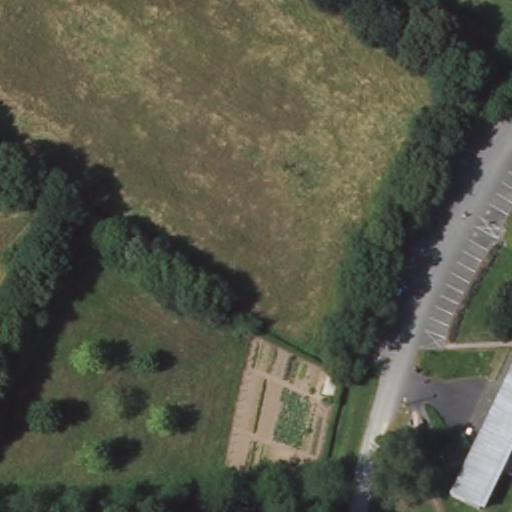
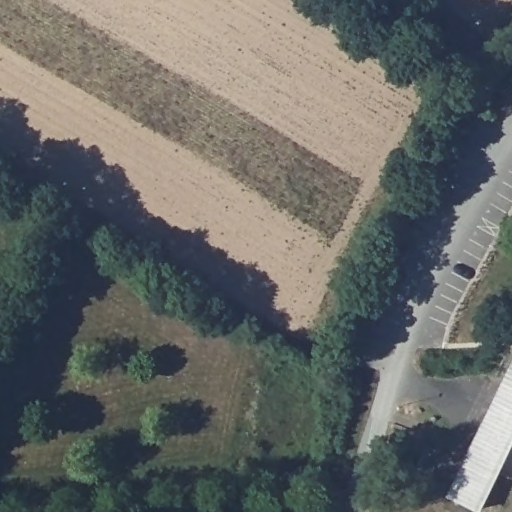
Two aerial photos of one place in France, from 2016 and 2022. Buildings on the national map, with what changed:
unchanged [(512,451),(488,500),(458,486),(512,375),(512,451)]

